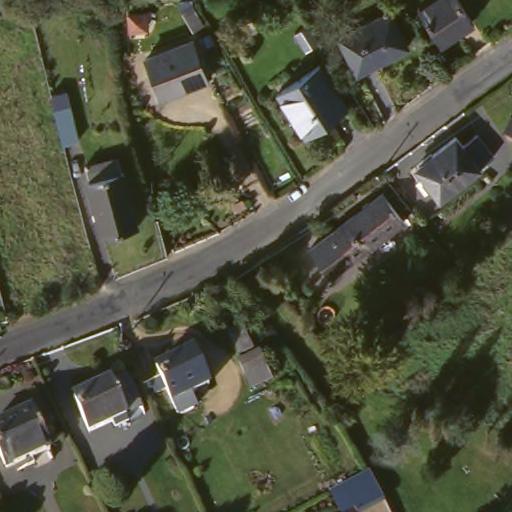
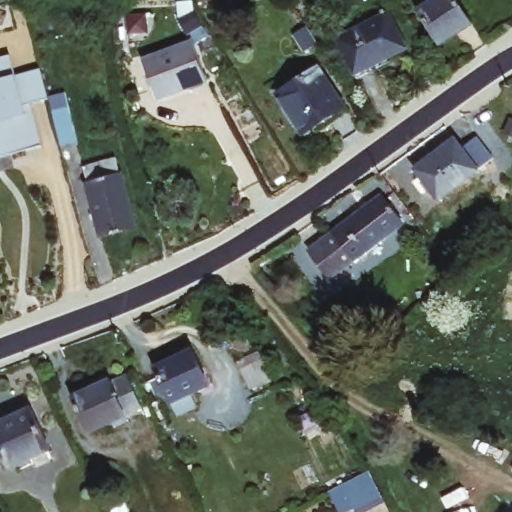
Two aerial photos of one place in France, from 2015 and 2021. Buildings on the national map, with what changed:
unchanged [(440,0),(461,0),(477,24),(446,45),(423,10),(440,0)]
unchanged [(338,40),(386,11),(406,43),(359,73),(338,40)]
unchanged [(153,59),(199,50),(208,87),(162,98),(153,59)]
new [(8,58),(14,79),(41,71),(49,101),(31,106),(44,149),(0,161),(0,61),(8,58)]
unchanged [(306,131),(281,91),(319,67),(345,107),(306,131)]
unchanged [(70,111),(79,145),(64,149),(54,114),(70,111)]
unchanged [(417,173),(454,140),(477,167),(439,199),(417,173)]
unchanged [(117,160),(136,225),(103,235),(88,184),(90,183),(85,168),(117,160)]
unchanged [(194,185),(207,219),(191,225),(177,191),(194,185)]
unchanged [(361,259),(360,258),(336,277),(314,252),(379,196),(402,224),(361,259)]
unchanged [(162,375),(159,366),(196,349),(211,380),(191,390),(196,399),(195,406),(195,407),(182,412),(178,409),(168,387),(157,391),(152,380),(162,375)]
unchanged [(258,374),(252,359),(270,351),(278,365),(282,375),(262,384),(258,374)]
unchanged [(79,399),(130,376),(146,411),(95,434),(79,399)]
unchanged [(8,471),(0,454),(0,425),(32,411),(51,452),(8,471)]
unchanged [(356,505),(341,512),(340,512),(329,490),(372,470),(386,501),(363,512),(360,512),(356,505)]

